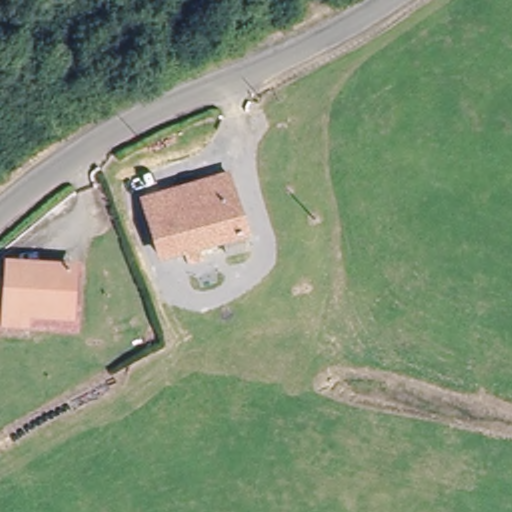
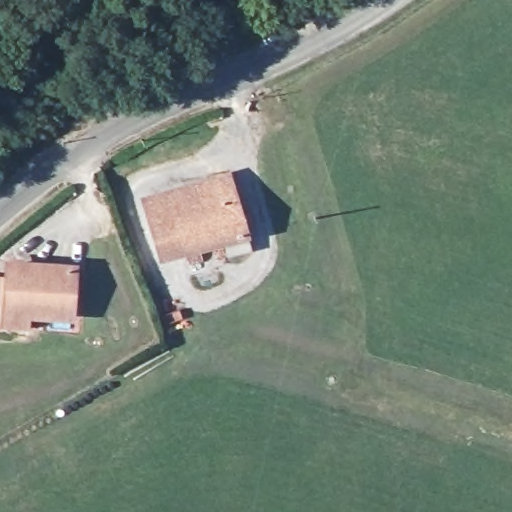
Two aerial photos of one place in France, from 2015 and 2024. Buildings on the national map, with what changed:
unchanged [(245,230),(251,228),(254,240),(231,247),(227,236),(199,245),(202,256),(188,261),(185,249),(163,256),(145,198),(228,173),(245,230)]
unchanged [(13,266),(73,270),(68,317),(28,313),(27,323),(0,320),(0,277),(12,279),(13,266)]

